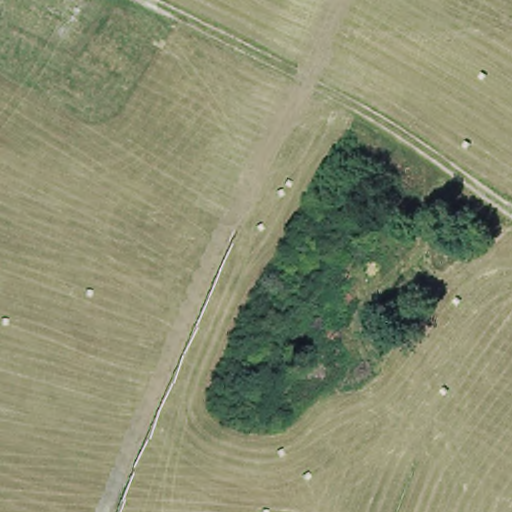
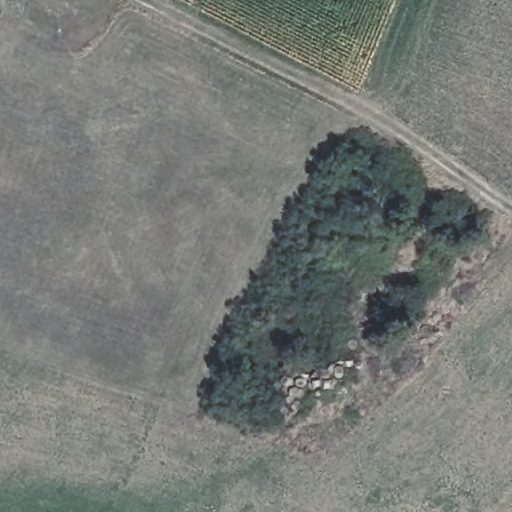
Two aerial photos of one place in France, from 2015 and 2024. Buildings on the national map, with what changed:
[]

